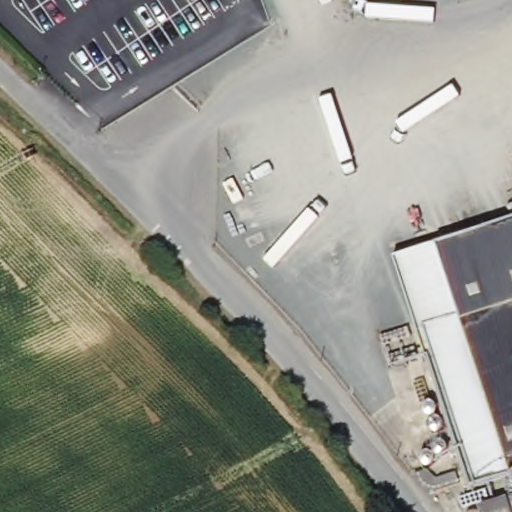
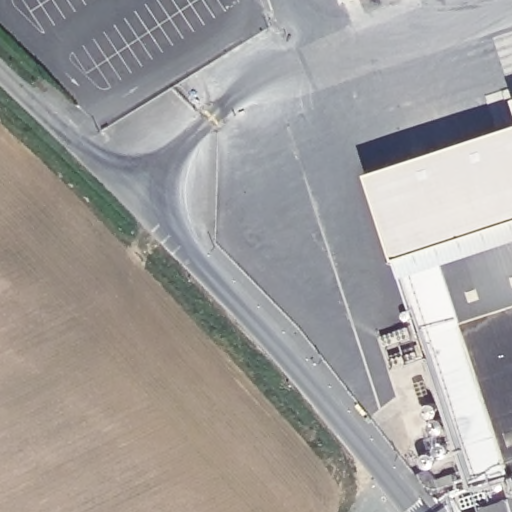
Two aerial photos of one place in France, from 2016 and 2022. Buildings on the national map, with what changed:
unchanged [(342,0),(348,0),(342,2),(342,0)]
new [(395,257),(392,258),(366,170),(512,123),(512,219),(441,242),(395,257)]
unchanged [(512,512),(472,512),(482,508),(506,501),(500,479),(469,488),(392,258),(441,242),(512,219),(512,512)]

